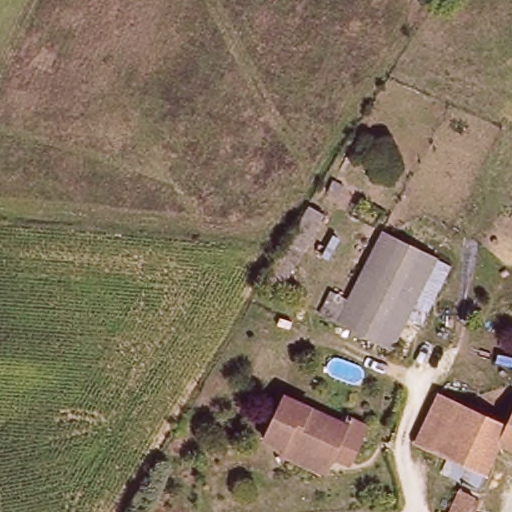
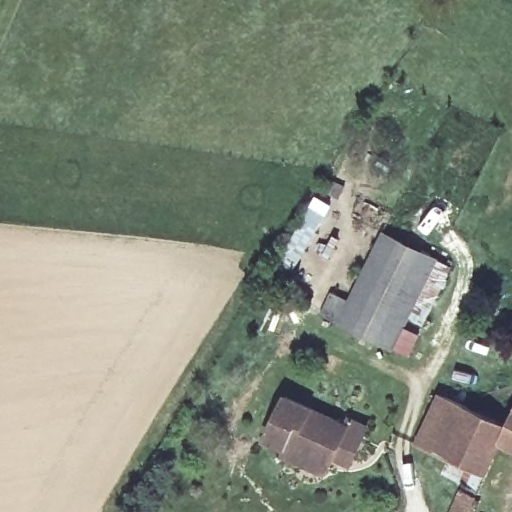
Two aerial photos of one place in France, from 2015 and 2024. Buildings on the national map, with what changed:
unchanged [(380,226),(433,253),(389,344),(335,317),(380,226)]
unchanged [(262,436),(284,388),(340,414),(342,410),(362,418),(355,444),(332,437),(326,452),(321,463),(281,446),(262,436)]
unchanged [(477,486),(462,479),(471,464),(420,437),(443,392),(504,424),(512,408),(512,443),(503,439),(477,486)]
unchanged [(457,485),(473,493),(465,512),(448,512),(446,512),(457,485)]

